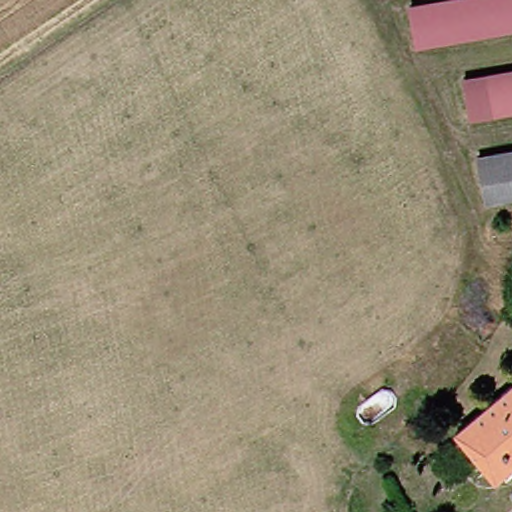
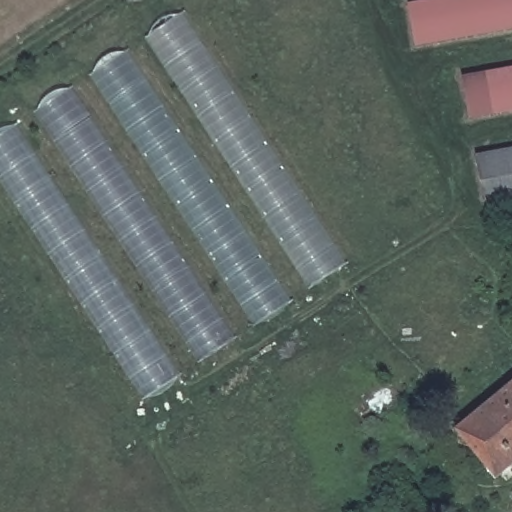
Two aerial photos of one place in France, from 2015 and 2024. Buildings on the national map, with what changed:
unchanged [(419,4),(442,0),(512,0),(512,33),(427,49),(419,4)]
new [(150,37),(183,13),(346,265),(312,287),(150,37)]
new [(258,325),(93,74),(129,50),(292,302),(258,325)]
unchanged [(481,119),(473,77),(512,71),(512,113),(481,119)]
new [(38,111),(71,89),(235,341),(203,360),(38,111)]
new [(0,174),(0,136),(18,124),(180,375),(146,396),(0,174)]
unchanged [(491,201),(485,159),(512,154),(512,197),(491,201)]
unchanged [(505,477),(466,430),(512,393),(512,472),(505,477)]

